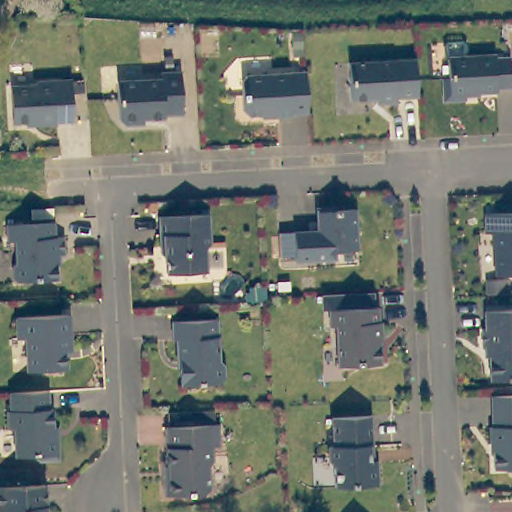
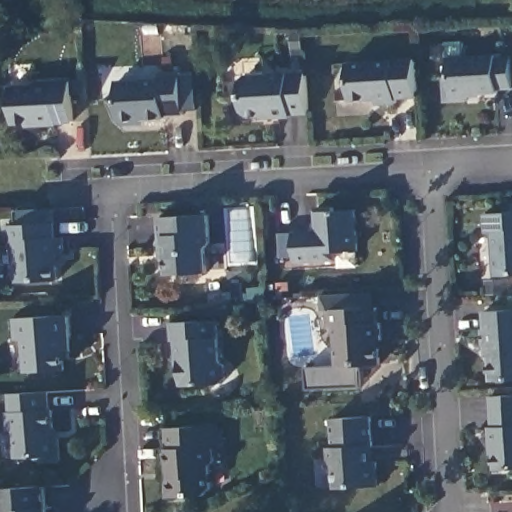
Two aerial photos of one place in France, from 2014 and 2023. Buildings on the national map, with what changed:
unchanged [(496,56),(497,60),(512,59),(512,69),(512,89),(498,90),(498,93),(467,95),(467,102),(445,103),(444,80),(450,80),(449,59),(496,56)]
unchanged [(411,60),(414,98),(393,99),(393,104),(373,105),(372,100),(347,101),(345,64),(411,60)]
unchanged [(158,75),(157,69),(177,68),(179,110),(161,111),(161,114),(132,116),(133,121),(121,121),(115,117),(113,78),(158,75)]
unchanged [(244,113),(243,82),(247,77),(307,74),(309,114),(292,115),(292,117),(273,118),(273,116),(249,117),(244,113)]
unchanged [(75,122),(58,123),(58,125),(28,127),(28,124),(14,124),(12,89),(35,87),(38,84),(72,82),(75,122)]
unchanged [(319,232),(318,209),(336,208),(336,212),(357,211),(359,252),(336,253),(337,261),(297,263),(295,233),(319,232)]
unchanged [(512,213),(512,276),(496,277),(494,234),(486,234),(485,215),(512,213)]
unchanged [(210,215),(211,244),(207,250),(208,274),(168,276),(166,253),(161,248),(160,218),(210,215)]
unchanged [(55,224),(56,239),(65,238),(65,256),(57,256),(58,281),(19,283),(15,280),(14,267),(18,263),(16,243),(9,243),(8,226),(55,224)]
unchanged [(378,308),(379,323),(382,323),(383,341),(380,341),(382,365),(339,367),(337,327),(331,328),(330,310),(378,308)]
unchanged [(512,311),(512,381),(492,382),(490,348),(484,349),(483,330),(486,330),(485,313),(512,311)]
unchanged [(18,318),(70,315),(72,351),(65,352),(66,370),(32,372),(30,339),(20,340),(18,318)]
unchanged [(181,360),(179,360),(178,342),(174,342),(173,323),(218,321),(220,361),(225,365),(226,380),(222,385),(183,387),(181,360)]
unchanged [(49,392),(50,411),(54,411),(56,439),(60,439),(61,461),(41,462),(36,457),(18,458),(16,434),(12,430),(10,430),(9,413),(12,413),(11,394),(49,392)]
unchanged [(495,446),(492,446),(491,428),(494,428),(492,397),(512,396),(512,470),(496,471),(495,446)]
unchanged [(372,417),(373,438),(374,447),(371,447),(372,463),(378,463),(380,487),(337,489),(336,468),(332,464),(331,463),(330,448),(335,448),(333,419),(372,417)]
unchanged [(220,426),(221,448),(214,448),(214,463),(210,468),(211,490),(206,496),(168,498),(166,479),(171,479),(168,428),(220,426)]
unchanged [(48,512),(0,512),(0,489),(47,487),(48,512)]

